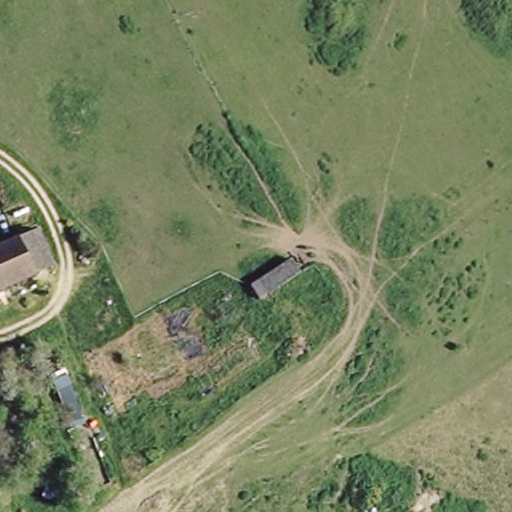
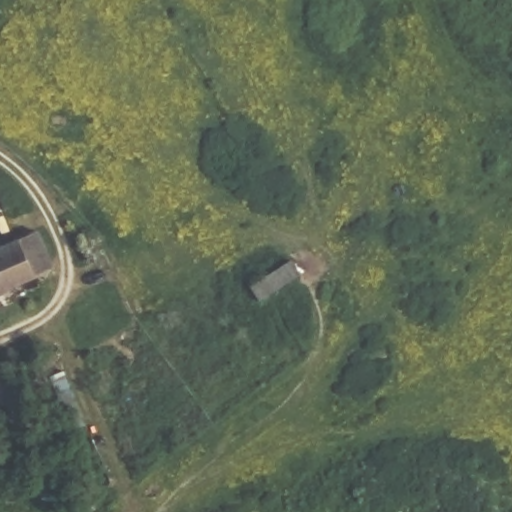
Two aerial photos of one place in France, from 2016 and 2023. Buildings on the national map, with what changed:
unchanged [(0,287),(0,251),(27,240),(38,273),(0,287)]
unchanged [(287,262),(298,277),(259,302),(248,289),(287,262)]

